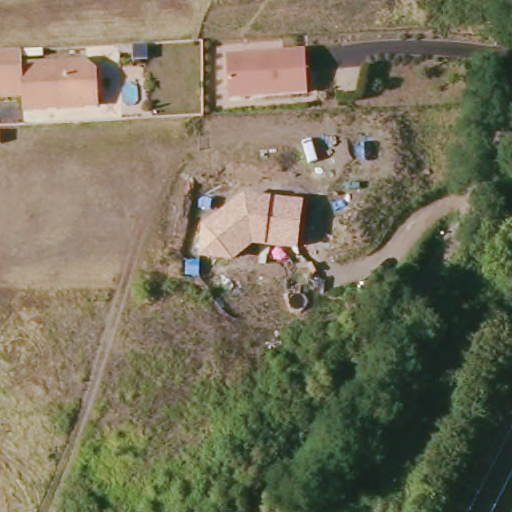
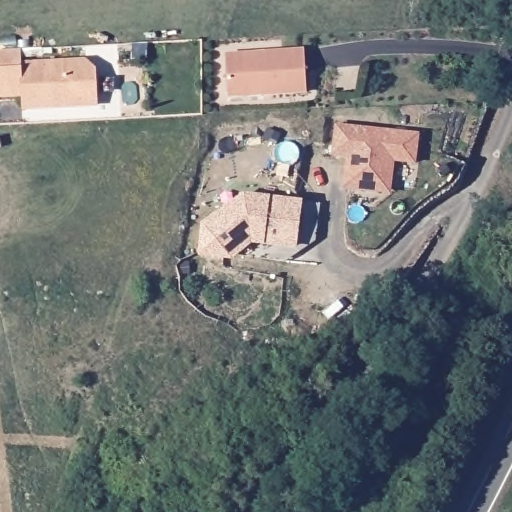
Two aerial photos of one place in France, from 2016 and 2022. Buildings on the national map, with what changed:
unchanged [(21,96),(0,97),(0,51),(19,50),(20,65),(85,62),(96,72),(97,96),(98,106),(82,107),(57,107),(45,108),(22,109),(21,96)]
unchanged [(228,92),(226,55),(305,51),(306,92),(263,95),(228,97),(228,92)]
new [(335,126),(419,137),(416,166),(395,163),(391,188),(383,195),(349,190),(350,181),(345,181),(348,158),(331,156),(335,126)]
unchanged [(298,251),(266,247),(253,246),(233,262),(198,258),(201,224),(245,194),(272,197),(304,201),(298,251)]

